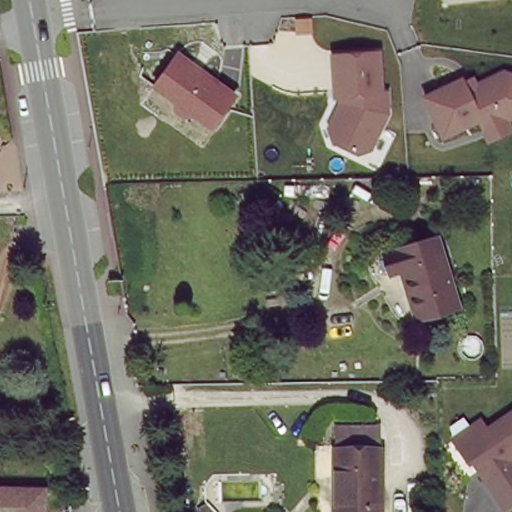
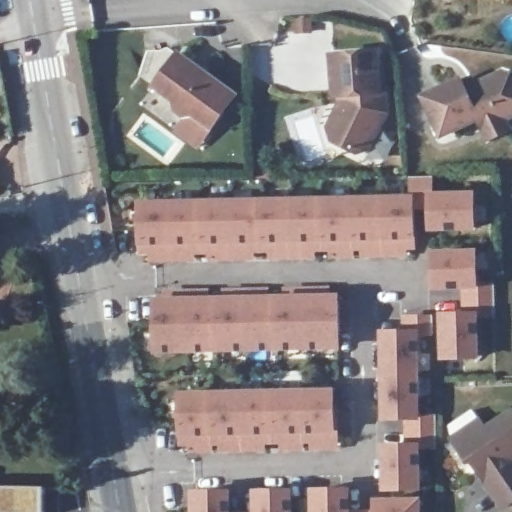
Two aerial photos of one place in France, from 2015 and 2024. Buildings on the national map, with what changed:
unchanged [(193,120),(181,121),(173,114),(171,101),(151,87),(176,49),(238,93),(212,133),(193,120)]
unchanged [(331,143),(328,130),(340,106),(339,101),(331,101),(329,52),(380,50),(382,90),(390,89),(392,114),(374,153),(358,157),(331,143)]
unchanged [(460,74),(479,78),(505,67),(512,70),(512,129),(485,142),(475,121),(441,137),(419,92),(460,74)]
new [(411,194),(412,178),(431,178),(431,194),(471,195),(471,223),(427,226),(426,245),(133,251),(133,201),(411,194)]
demolished [(391,246),(437,232),(446,257),(395,260),(391,246)]
new [(473,252),(475,354),(415,355),(416,415),(434,415),(436,445),(419,446),(418,487),(380,488),(379,446),(399,446),(399,415),(381,415),(380,329),(405,329),(404,315),(453,313),(452,283),(432,283),(429,253),(473,252)]
demolished [(459,300),(420,313),(404,264),(396,267),(395,260),(446,257),(459,300)]
new [(156,300),(173,298),(174,319),(201,318),(201,298),(234,297),(234,317),(264,316),(265,296),(295,296),(295,315),(323,315),(324,296),(341,296),(341,346),(158,350),(156,300)]
new [(336,389),(336,443),(319,443),(319,439),(306,439),(306,447),(278,448),(278,440),(260,441),(260,448),(230,448),(228,440),(213,441),(213,449),(197,449),(197,443),(183,443),(181,395),(336,389)]
unchanged [(503,507),(474,465),(471,460),(467,462),(457,447),(451,438),(469,426),(477,420),(479,420),(485,428),(511,410),(512,412),(512,500),(503,507)]
demolished [(384,450),(382,512),(335,512),(336,449),(384,450)]
unchanged [(48,512),(0,512),(0,487),(48,488),(48,512)]
new [(228,489),(229,512),(191,512),(191,489),(228,489)]
new [(353,489),(353,496),(351,512),(314,512),(315,489),(353,489)]
new [(255,512),(255,491),(291,491),(291,512),(255,512)]
new [(376,499),(417,498),(418,512),(375,512),(376,499)]
demolished [(218,512),(204,512),(200,507),(208,500),(218,512)]

